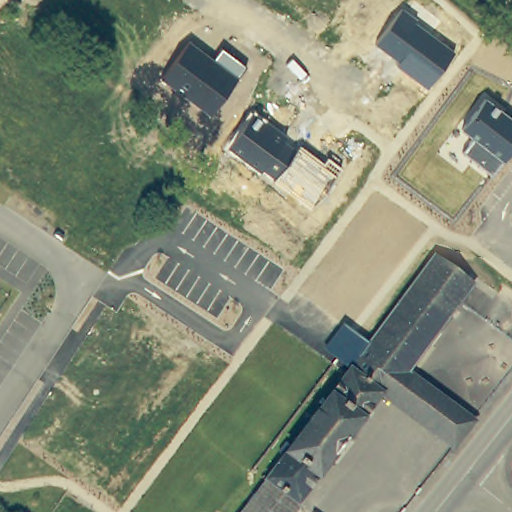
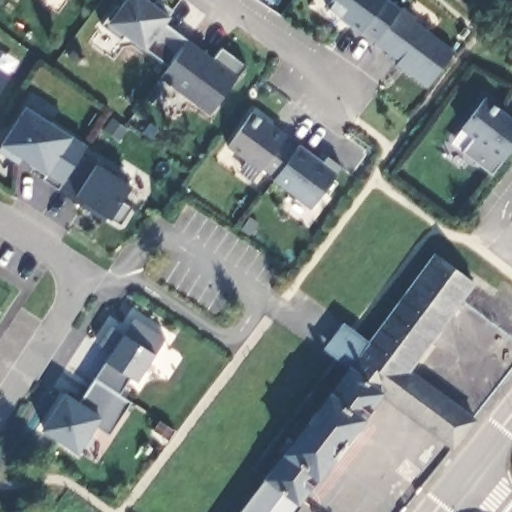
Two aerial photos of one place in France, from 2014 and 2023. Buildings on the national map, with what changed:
new [(115,5),(120,8),(126,0),(157,0),(173,11),(170,15),(164,24),(188,41),(168,67),(146,51),(123,36),(120,41),(100,24),(115,5)]
new [(332,0),(386,0),(398,10),(374,44),(327,7),(332,0)]
unchanged [(394,66),(398,61),(374,44),(398,10),(454,51),(426,90),(394,66)]
unchanged [(159,78),(188,41),(212,60),(220,48),(244,67),(209,116),(159,78)]
new [(0,91),(0,70),(10,76),(0,91)]
unchanged [(464,152),(474,139),(460,129),(483,97),(512,120),(512,148),(489,174),(464,152)]
new [(113,220),(106,215),(104,220),(59,191),(41,180),(45,173),(3,145),(26,108),(74,137),(88,147),(83,155),(96,164),(99,160),(115,171),(114,174),(133,187),(124,202),(132,206),(121,225),(113,220)]
unchanged [(249,110),(323,164),(326,160),(339,170),(309,210),(272,182),(275,178),(260,168),(258,171),(227,147),(249,110)]
unchanged [(472,277),(407,365),(369,337),(434,249),(472,277)]
new [(39,429),(64,392),(79,402),(105,361),(110,352),(95,342),(108,323),(122,333),(134,316),(167,339),(155,356),(138,384),(130,378),(119,395),(130,402),(109,435),(97,427),(79,456),(39,429)]
unchanged [(321,351),(342,323),(366,342),(345,368),(321,351)]
unchanged [(369,337),(407,365),(433,385),(472,413),(452,445),(381,391),(298,501),(265,476),(369,337)]
unchanged [(295,512),(236,512),(264,475),(265,476),(298,501),(302,503),(295,512)]

